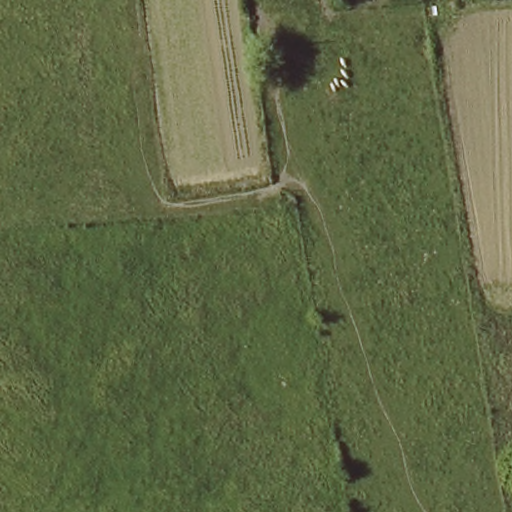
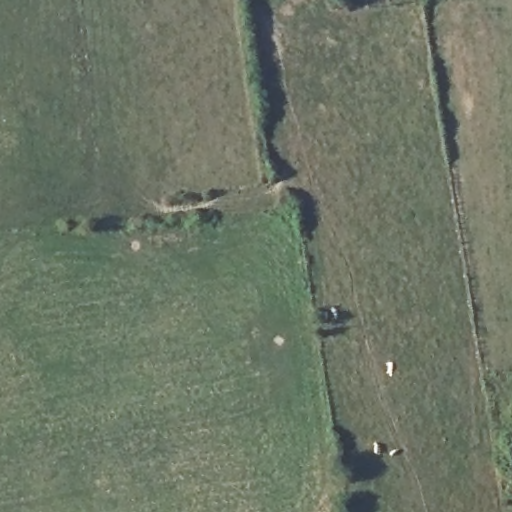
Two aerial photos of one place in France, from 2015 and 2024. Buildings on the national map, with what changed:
[]

